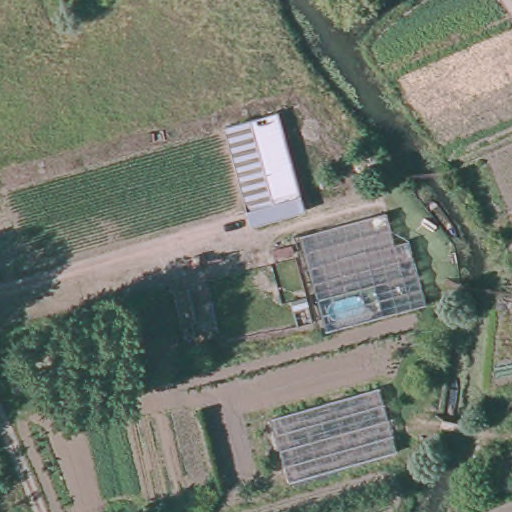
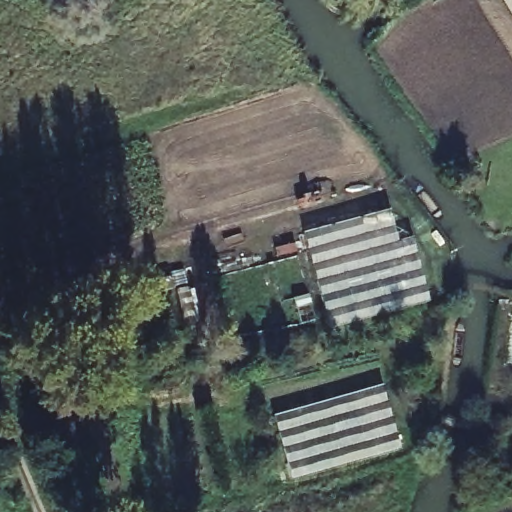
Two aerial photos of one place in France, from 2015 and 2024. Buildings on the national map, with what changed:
demolished [(282,103),(307,203),(250,220),(222,121),(282,103)]
unchanged [(302,238),(387,215),(389,222),(395,247),(409,244),(424,305),(325,332),(304,245),(302,238)]
unchanged [(402,455),(297,485),(278,422),(384,392),(402,455)]

